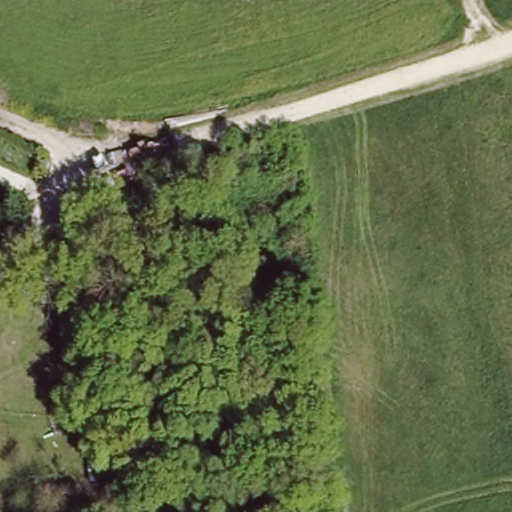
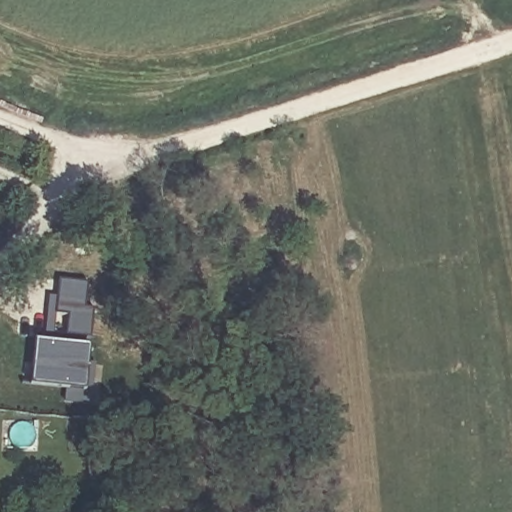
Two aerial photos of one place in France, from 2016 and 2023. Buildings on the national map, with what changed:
new [(33,338),(37,338),(40,304),(50,304),(52,279),(82,282),(80,307),(88,308),(85,335),(67,333),(66,341),(88,343),(86,361),(94,362),(90,402),(75,399),(76,388),(30,383),(33,338)]

